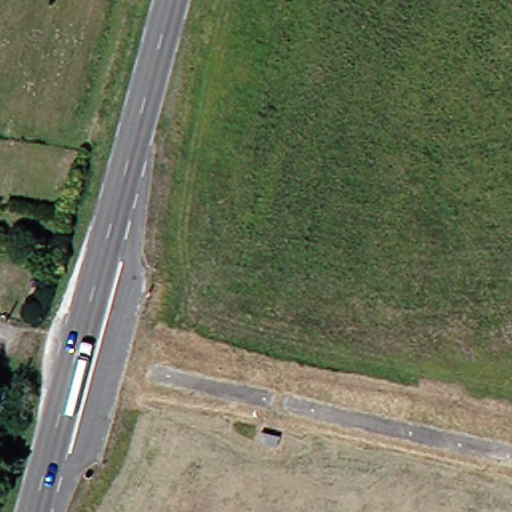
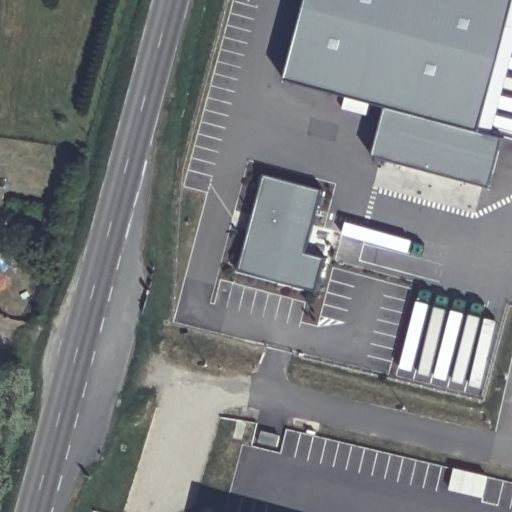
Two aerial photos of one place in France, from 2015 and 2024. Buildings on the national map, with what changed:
new [(480,131),(503,139),(490,188),(373,156),(386,107),(285,81),(306,0),(512,0),(512,12),(509,24),(480,131)]
new [(512,24),(509,24),(512,12),(512,24)]
new [(264,174),(324,190),(315,222),(335,227),(317,293),(238,272),(264,174)]
new [(489,476),(484,498),(450,490),(454,469),(489,476)]

